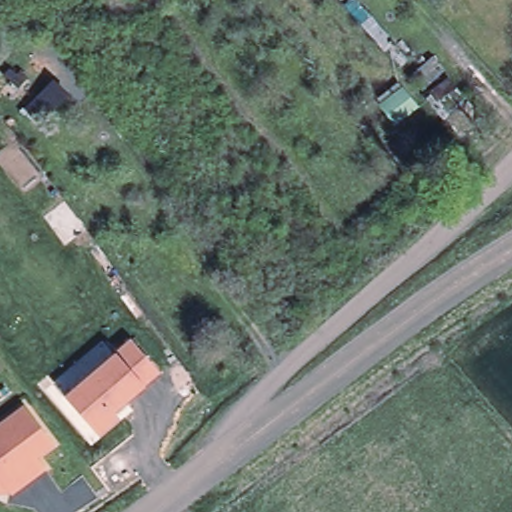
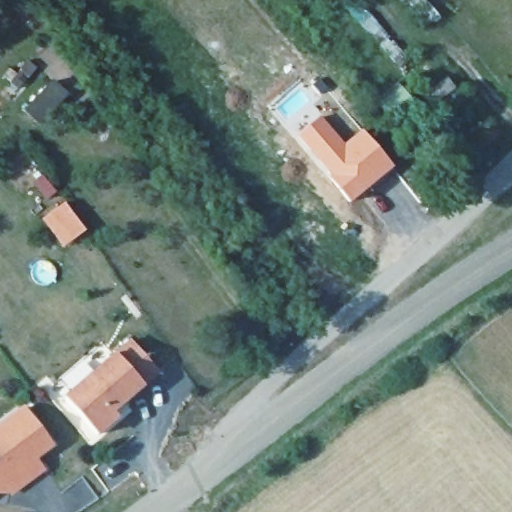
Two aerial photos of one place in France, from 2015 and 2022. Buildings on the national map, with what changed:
unchanged [(392,130),(370,103),(400,77),(420,107),(392,130)]
new [(322,116),(345,143),(363,130),(395,165),(352,204),(298,135),(322,116)]
new [(66,202),(86,231),(63,247),(43,220),(66,202)]
unchanged [(273,291),(280,300),(272,306),(265,296),(273,291)]
unchanged [(133,338),(160,369),(113,411),(117,416),(96,435),(65,399),(133,338)]
unchanged [(51,446),(33,458),(40,467),(42,469),(8,495),(0,484),(0,429),(24,410),(51,446)]

